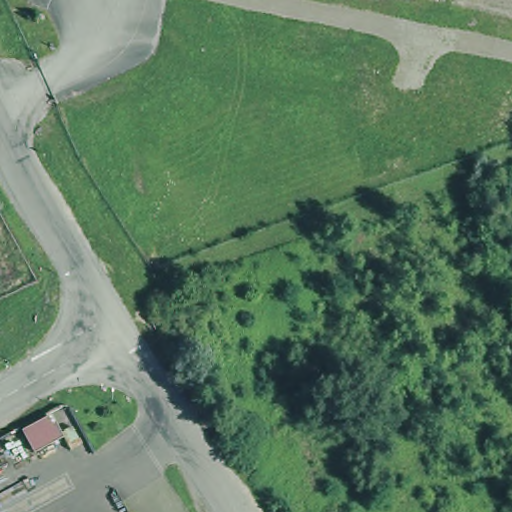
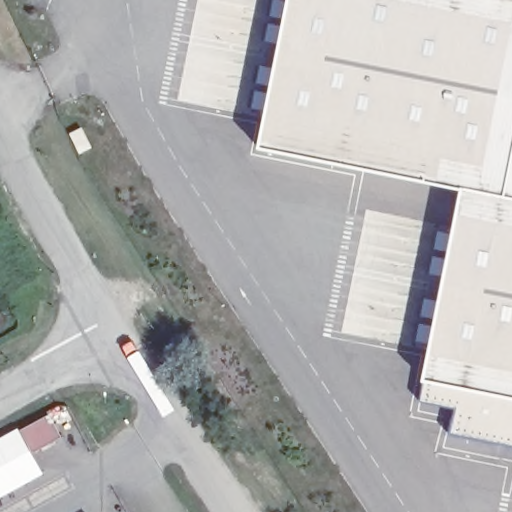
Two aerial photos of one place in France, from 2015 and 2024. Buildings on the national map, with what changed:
new [(450,407),(413,401),(451,183),(255,145),(282,0),(512,0),(512,445),(450,433),(450,407)]
unchanged [(71,454),(63,439),(35,454),(22,430),(52,414),(63,434),(73,429),(83,447),(71,454)]

